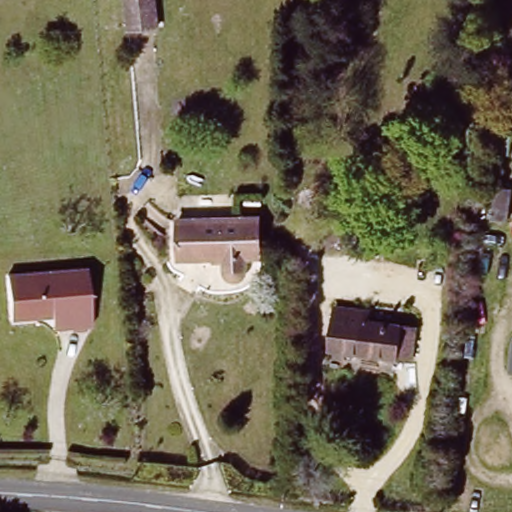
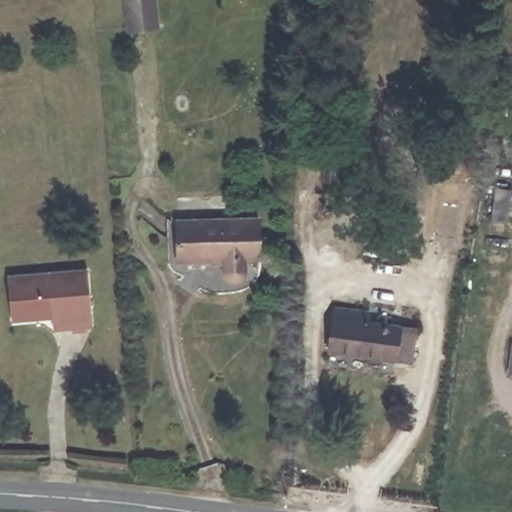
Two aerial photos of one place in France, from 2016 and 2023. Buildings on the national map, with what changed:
unchanged [(128,31),(125,0),(157,0),(159,29),(128,31)]
unchanged [(508,194),(502,230),(483,227),(489,191),(508,194)]
unchanged [(260,219),(261,260),(248,260),(248,267),(245,273),(241,277),(233,278),(228,275),(225,268),(225,261),(178,260),(177,220),(260,219)]
unchanged [(89,266),(92,318),(9,327),(5,274),(89,266)]
unchanged [(413,332),(409,361),(328,351),(333,312),(367,316),(366,326),(413,332)]

